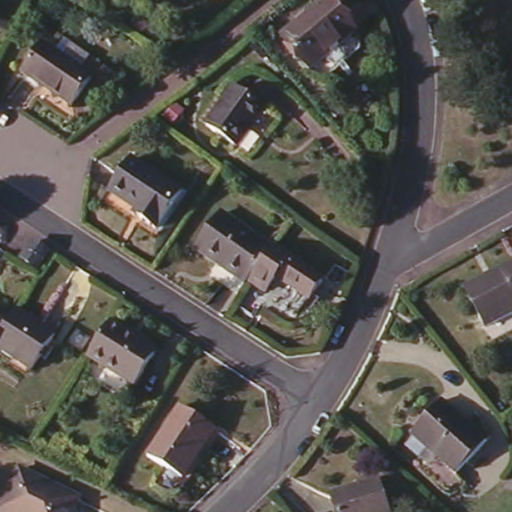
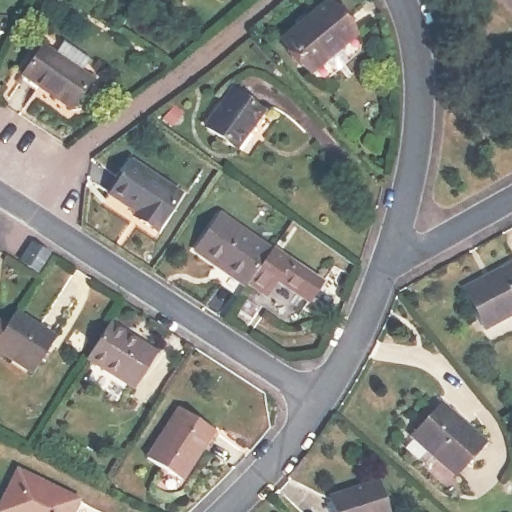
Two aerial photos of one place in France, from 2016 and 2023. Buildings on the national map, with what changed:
unchanged [(355,42),(315,73),(308,70),(303,64),(275,30),(312,0),(327,0),(350,27),(353,31),(355,42)]
unchanged [(20,83),(24,76),(23,75),(40,47),(53,55),(61,42),(89,60),(80,73),(90,80),(71,110),(39,87),(35,93),(20,83)]
unchanged [(267,104),(238,143),(207,119),(235,81),(267,104)]
unchanged [(183,191),(156,229),(140,217),(142,213),(111,190),(133,156),(183,191)]
unchanged [(232,272),(235,267),(203,245),(226,210),(277,244),(255,277),(254,279),(250,284),(232,272)]
unchanged [(279,241),(329,276),(315,296),(282,273),(271,288),(255,277),(277,244),(279,241)]
unchanged [(44,242),(59,253),(49,268),(34,258),(44,242)]
unchanged [(463,285),(512,261),(512,313),(485,327),(463,285)]
unchanged [(20,307),(57,333),(34,368),(0,345),(0,337),(10,323),(20,307)]
unchanged [(10,323),(0,337),(0,317),(10,323)]
unchanged [(157,351),(135,386),(89,356),(112,321),(157,351)]
unchanged [(486,435),(455,469),(411,429),(443,396),(486,435)]
unchanged [(145,451),(180,403),(213,426),(218,430),(206,448),(200,444),(179,475),(145,451)]
unchanged [(70,512),(69,511),(69,512),(0,512),(0,503),(16,469),(75,497),(80,499),(75,512),(70,512)]
unchanged [(381,475),(392,512),(331,512),(325,494),(381,475)]

